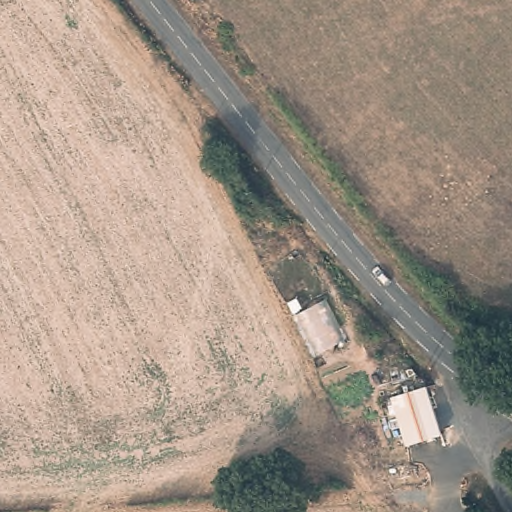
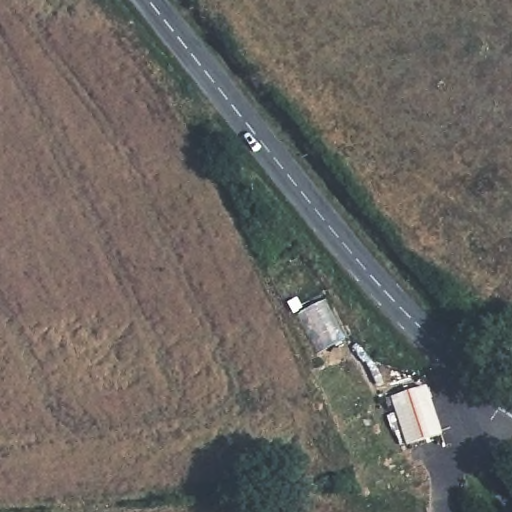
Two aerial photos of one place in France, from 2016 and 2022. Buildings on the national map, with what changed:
unchanged [(343,340),(318,355),(295,316),(322,302),(343,340)]
unchanged [(443,436),(409,445),(394,396),(428,386),(443,436)]

